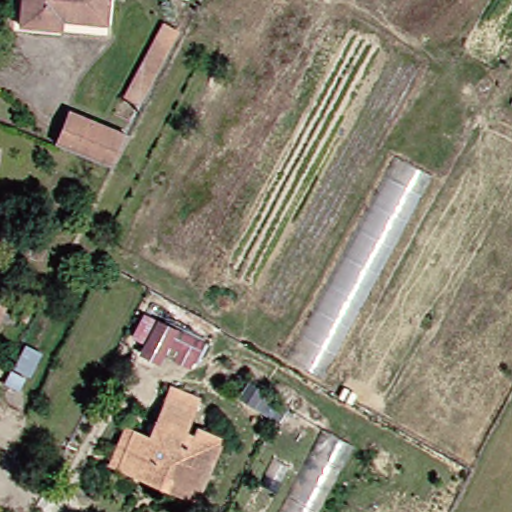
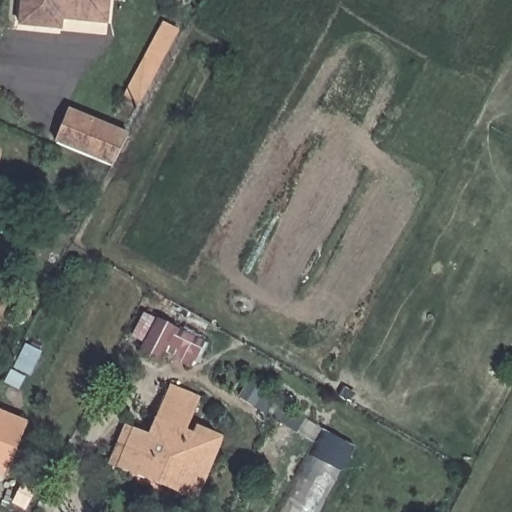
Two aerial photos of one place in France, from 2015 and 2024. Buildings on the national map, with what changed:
unchanged [(97,23),(52,19),(51,29),(9,25),(11,0),(99,0),(97,23)]
demolished [(488,63),(457,46),(481,0),(512,0),(512,18),(488,63)]
unchanged [(154,23),(167,31),(128,101),(115,94),(154,23)]
unchanged [(102,166),(46,142),(60,110),(118,134),(102,166)]
demolished [(286,357),(392,155),(430,176),(321,377),(286,357)]
unchanged [(154,313),(201,338),(187,367),(157,351),(153,359),(134,350),(154,313)]
new [(22,385),(7,377),(23,343),(42,352),(31,377),(27,375),(22,385)]
unchanged [(189,397),(175,431),(184,434),(187,426),(212,437),(194,479),(189,477),(182,491),(170,485),(167,491),(127,474),(129,468),(111,460),(124,429),(139,435),(161,385),(189,397)]
new [(4,479),(0,477),(0,411),(29,422),(4,479)]
unchanged [(347,437),(307,512),(268,512),(316,416),(347,437)]

